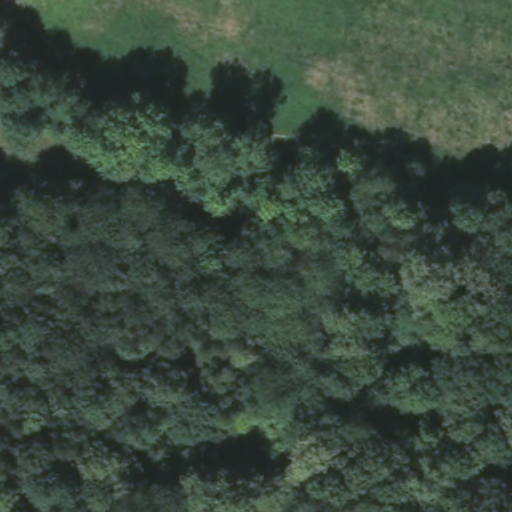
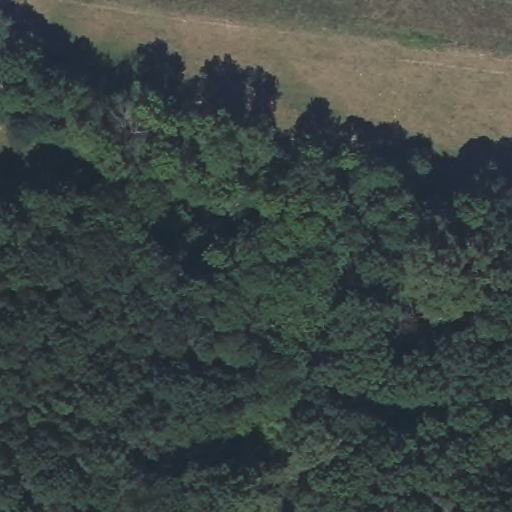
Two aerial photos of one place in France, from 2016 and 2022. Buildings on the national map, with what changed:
[]

